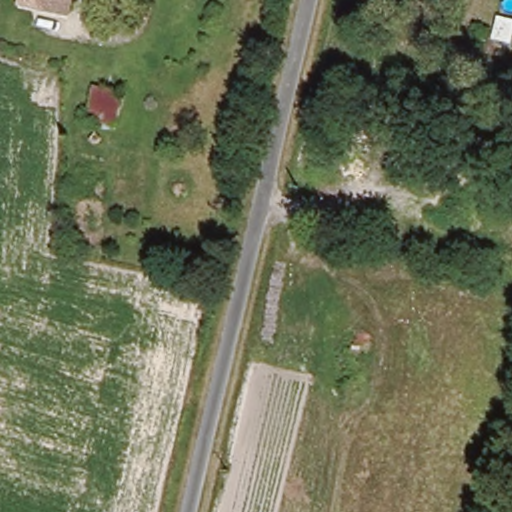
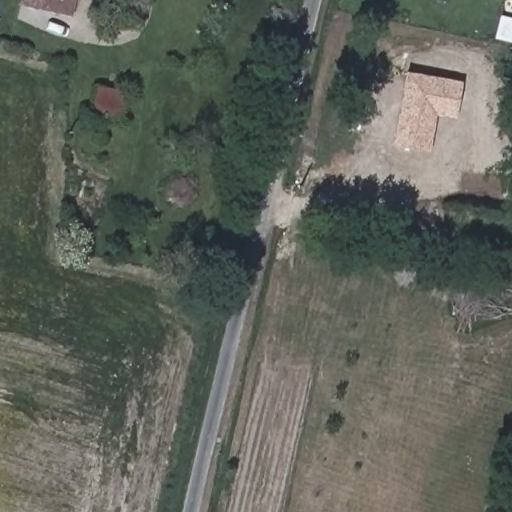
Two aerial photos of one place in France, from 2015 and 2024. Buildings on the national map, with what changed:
unchanged [(66,31),(15,17),(20,0),(76,0),(66,31)]
new [(427,151),(395,146),(408,72),(463,82),(456,117),(434,113),(427,151)]
unchanged [(91,116),(99,83),(129,91),(120,124),(91,116)]

